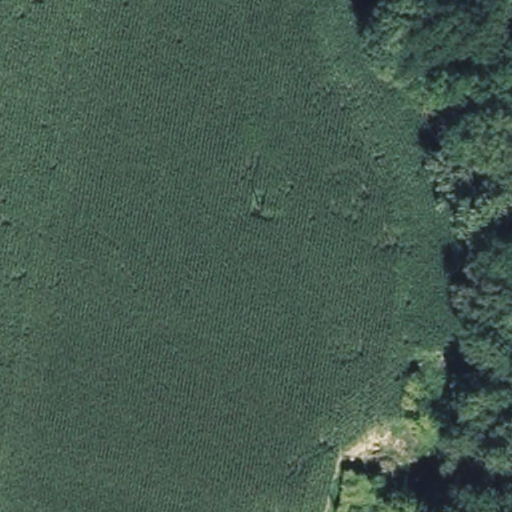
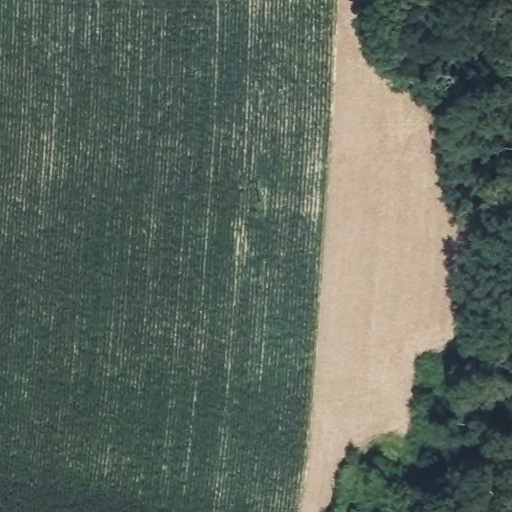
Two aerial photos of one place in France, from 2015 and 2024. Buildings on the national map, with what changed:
unchanged [(387,512),(344,512),(344,466),(386,467),(387,512)]

